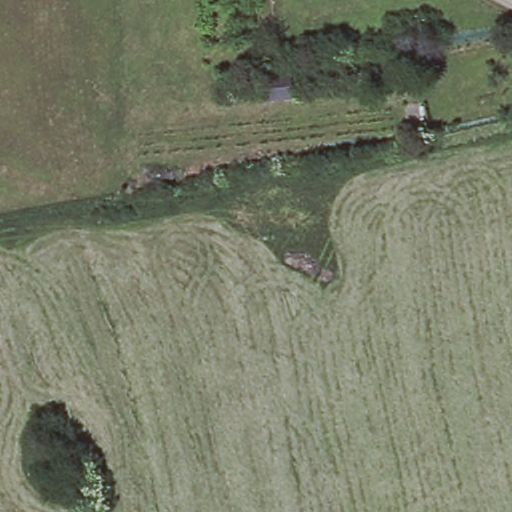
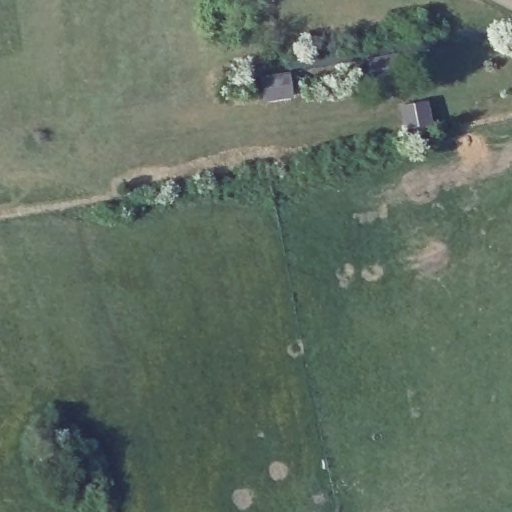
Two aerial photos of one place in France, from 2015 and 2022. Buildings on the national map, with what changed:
unchanged [(46,450),(52,461),(43,466),(37,454),(46,450)]

